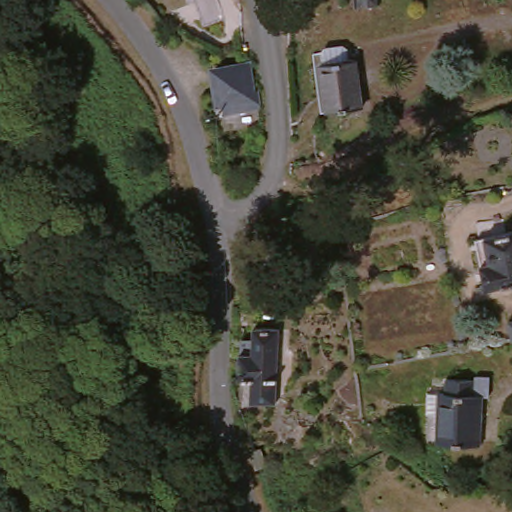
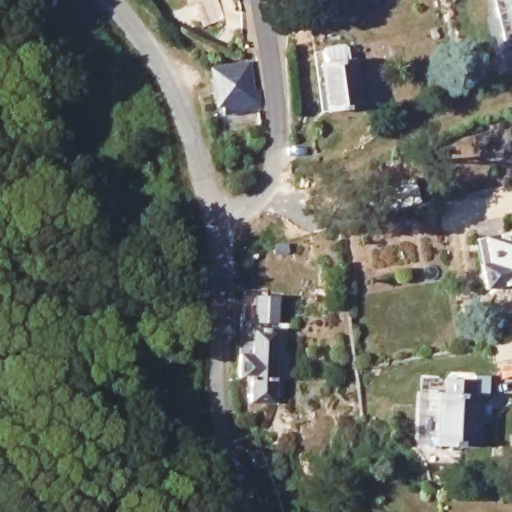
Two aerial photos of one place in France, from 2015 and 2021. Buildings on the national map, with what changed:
new [(512,0),(512,37),(506,39),(495,0),(512,0)]
unchanged [(357,112),(320,117),(315,69),(322,68),(320,53),(342,51),(344,65),(352,64),(357,112)]
unchanged [(253,113),(235,117),(231,102),(215,106),(208,76),(244,70),(253,113)]
unchanged [(475,245),(471,227),(498,221),(500,235),(512,232),(512,287),(480,294),(469,246),(475,245)]
unchanged [(512,341),(507,342),(503,323),(512,321),(512,341)]
unchanged [(249,355),(248,335),(272,334),(272,407),(247,408),(246,391),(236,391),(238,356),(249,355)]
unchanged [(432,445),(432,408),(442,408),(442,391),(471,388),(471,385),(490,383),(491,403),(481,404),(480,443),(432,445)]

